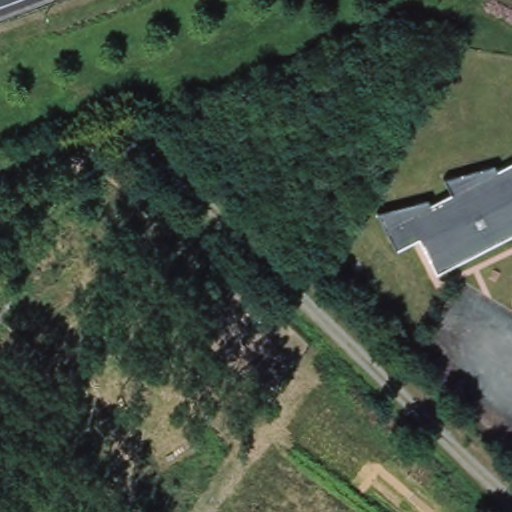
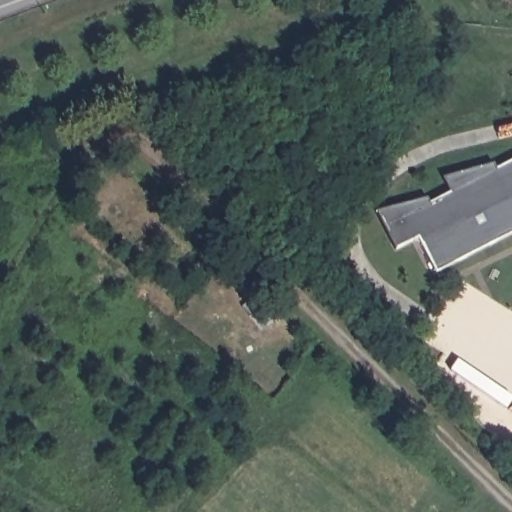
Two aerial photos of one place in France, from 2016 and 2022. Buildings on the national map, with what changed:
unchanged [(423,233),(401,246),(381,207),(431,192),(436,200),(457,189),(449,172),(500,157),(501,162),(512,157),(512,232),(443,269),(423,233)]

